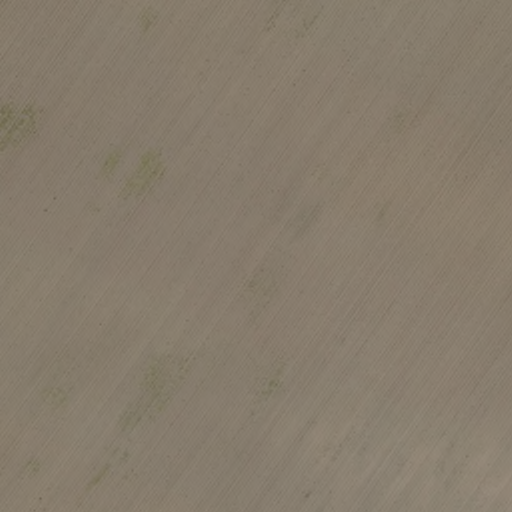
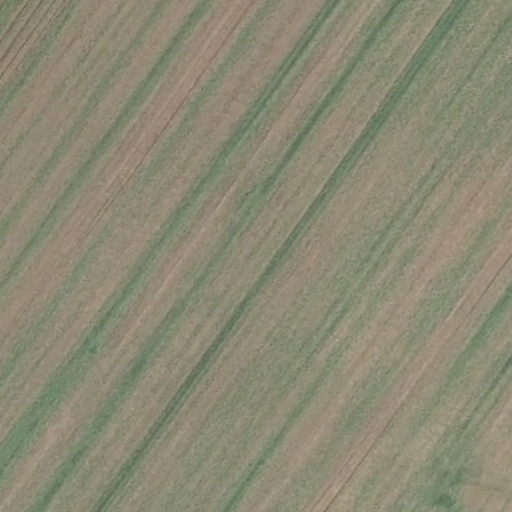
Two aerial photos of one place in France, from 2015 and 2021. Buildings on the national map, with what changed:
[]

